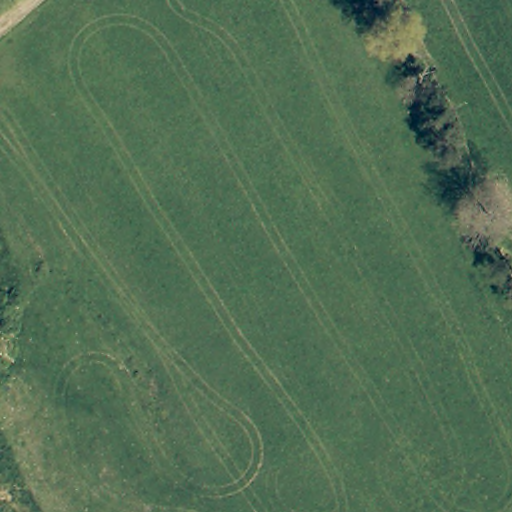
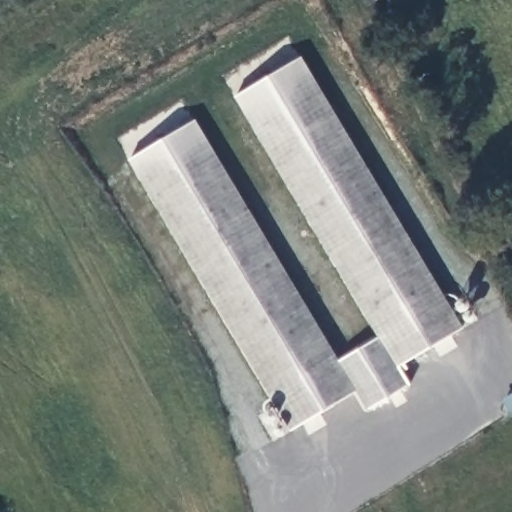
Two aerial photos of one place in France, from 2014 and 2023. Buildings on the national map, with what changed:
new [(129,160),(195,120),(340,361),(378,337),(235,96),(301,56),(463,328),(405,362),(408,368),(403,371),(410,384),(365,411),(355,394),(290,431),(129,160)]

